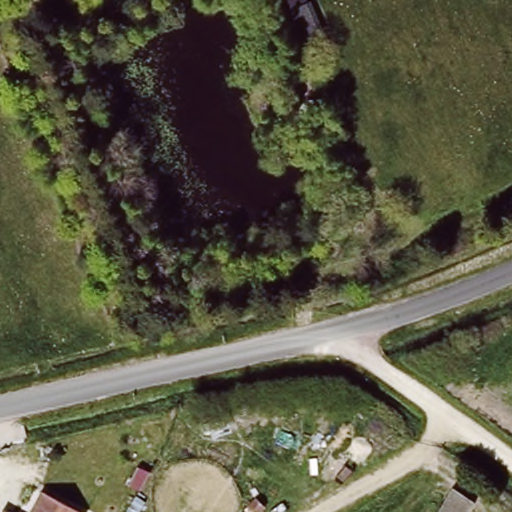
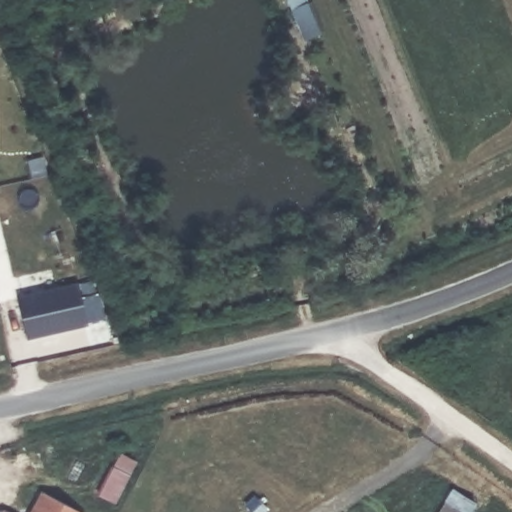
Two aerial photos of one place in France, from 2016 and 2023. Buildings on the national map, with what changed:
new [(86,325),(26,338),(15,295),(76,283),(86,325)]
unchanged [(91,504),(87,512),(33,512),(49,482),(91,504)]
unchanged [(472,498),(464,512),(435,512),(451,486),(472,498)]
unchanged [(5,511),(7,512),(4,512),(5,511)]

